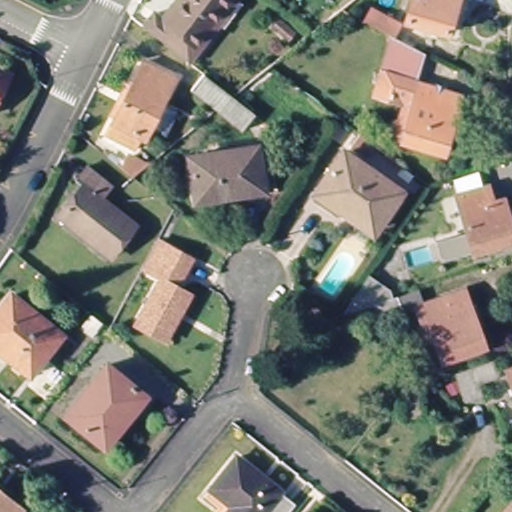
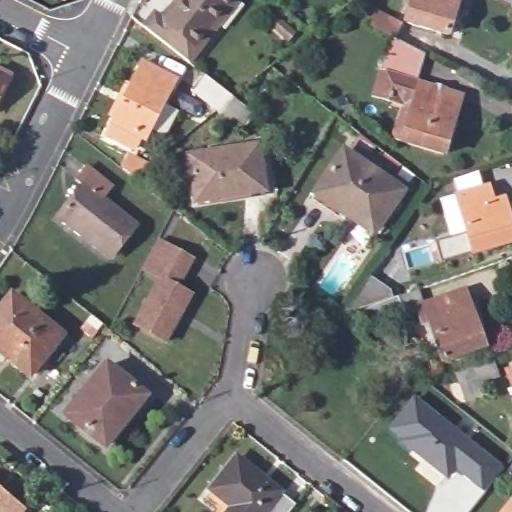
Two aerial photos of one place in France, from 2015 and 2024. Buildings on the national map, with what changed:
unchanged [(146,33),(155,20),(168,30),(192,0),(229,0),(235,5),(200,49),(198,47),(184,63),(159,44),(146,33)]
unchanged [(461,0),(451,39),(409,29),(417,0),(461,0)]
unchanged [(403,114),(393,111),(374,106),(390,44),(387,42),(363,30),(371,16),(400,30),(392,45),(424,61),(417,90),(464,102),(449,159),(410,149),(395,145),(403,114)]
unchanged [(145,64),(176,80),(148,134),(144,132),(136,148),(110,135),(145,64)]
unchanged [(9,75),(0,95),(0,71),(9,75)]
unchanged [(183,93),(199,72),(229,97),(252,114),(236,135),(209,114),(183,93)]
unchanged [(135,154),(153,164),(136,177),(126,169),(135,154)]
unchanged [(256,154),(264,194),(199,207),(191,167),(256,154)]
unchanged [(343,157),(403,193),(378,234),(338,210),(334,217),(313,205),(343,157)]
unchanged [(120,186),(108,202),(138,224),(113,257),(61,217),(86,184),(79,179),(91,164),(120,186)]
unchanged [(495,198),(509,194),(512,201),(512,235),(480,246),(476,236),(465,239),(450,196),(490,182),(495,198)]
unchanged [(191,261),(177,287),(188,293),(163,341),(136,327),(159,282),(140,272),(156,243),(191,261)]
unchanged [(483,352),(441,367),(426,326),(421,328),(417,316),(405,321),(377,331),(370,312),(398,302),(415,296),(417,295),(423,312),(464,297),(483,352)]
unchanged [(59,338),(28,379),(0,357),(0,314),(10,300),(59,338)]
unchanged [(486,361),(491,374),(471,383),(476,395),(463,400),(452,376),(486,361)]
unchanged [(103,365),(146,399),(133,415),(125,409),(97,444),(62,417),(103,365)]
unchanged [(512,401),(501,372),(512,368),(512,401)]
new [(414,393),(505,467),(483,493),(456,474),(448,482),(405,446),(385,427),(414,393)]
unchanged [(210,494),(237,462),(296,508),(293,512),(231,512),(210,494)]
unchanged [(21,512),(0,512),(0,495),(21,512)]
unchanged [(512,504),(512,512),(500,512),(508,501),(512,504)]

